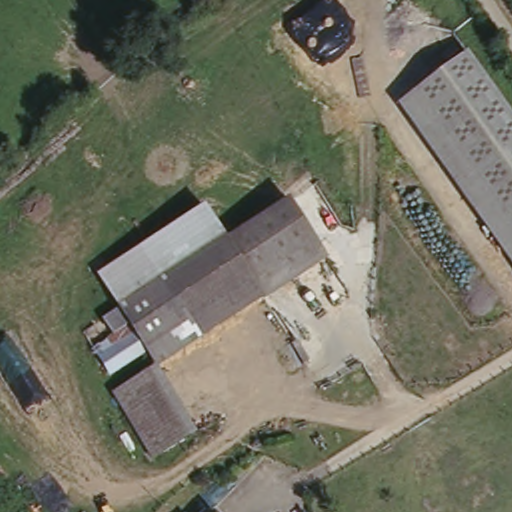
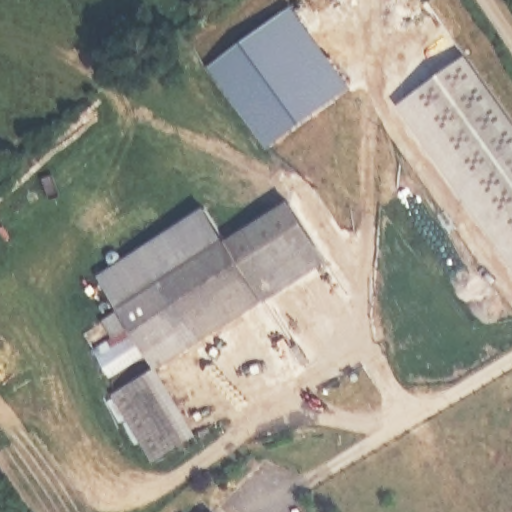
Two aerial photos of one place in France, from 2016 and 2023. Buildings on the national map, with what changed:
new [(295,12),(354,89),(270,149),(212,70),(295,12)]
unchanged [(512,256),(397,104),(470,52),(512,110),(512,256)]
unchanged [(302,198),(340,256),(278,296),(241,238),(302,198)]
unchanged [(134,306),(142,319),(112,338),(101,321),(119,308),(97,274),(206,205),(231,244),(134,306)]
unchanged [(134,306),(241,238),(278,296),(172,366),(157,347),(142,319),(134,306)]
unchanged [(157,347),(120,370),(103,344),(142,319),(157,347)]
unchanged [(155,370),(195,437),(164,456),(124,389),(155,370)]

